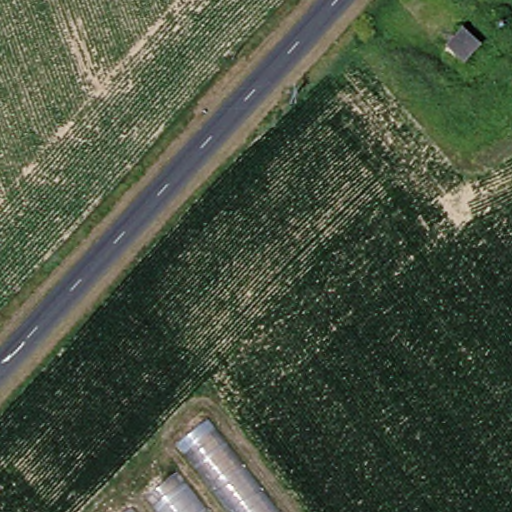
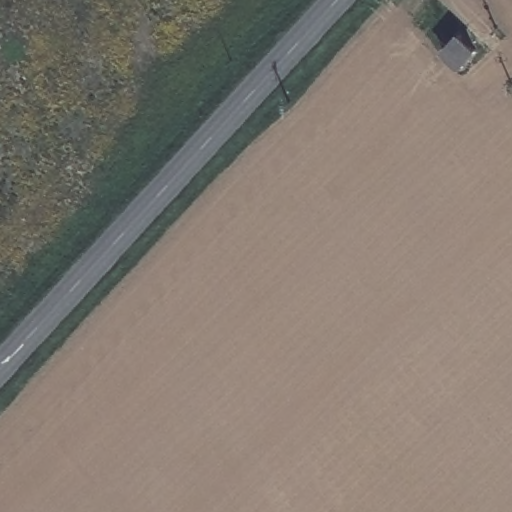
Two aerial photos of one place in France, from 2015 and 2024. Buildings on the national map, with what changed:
unchanged [(436,52),(452,32),(470,47),(454,66),(436,52)]
demolished [(266,512),(222,512),(177,452),(202,427),(266,512)]
demolished [(191,512),(144,512),(135,500),(168,482),(191,512)]

